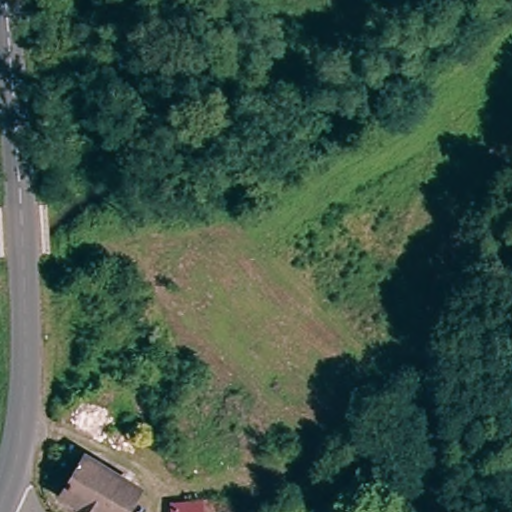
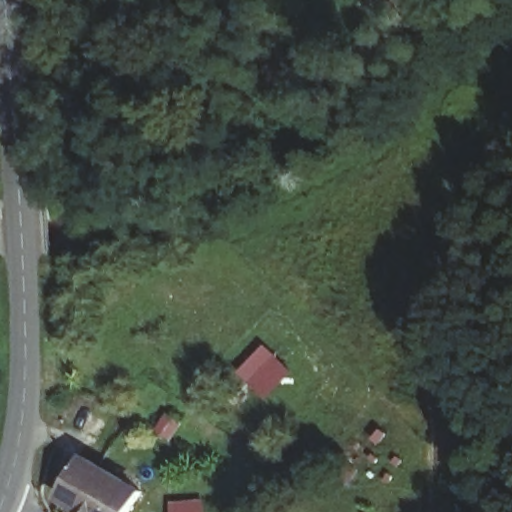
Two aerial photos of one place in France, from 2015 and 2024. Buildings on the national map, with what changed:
new [(294,370),(267,398),(239,370),(264,344),(294,370)]
unchanged [(63,490),(90,458),(145,502),(137,512),(88,512),(63,490)]
new [(203,500),(204,512),(171,512),(170,503),(203,500)]

